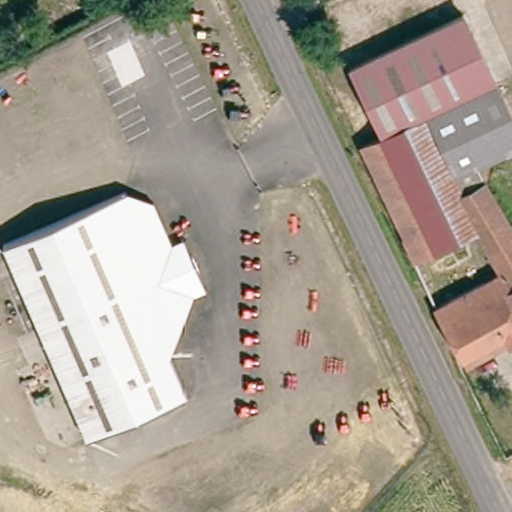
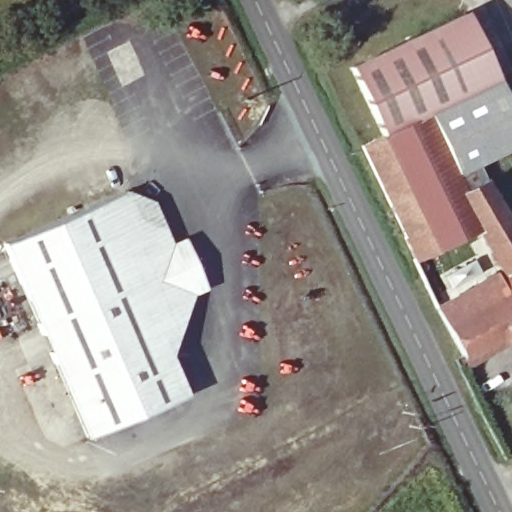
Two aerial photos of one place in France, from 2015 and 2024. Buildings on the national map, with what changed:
unchanged [(467,6),(512,83),(512,141),(483,157),(463,168),(430,111),(394,130),(384,111),(360,65),(467,6)]
unchanged [(512,232),(512,233),(501,238),(494,223),(431,256),(375,140),(394,130),(430,111),(463,168),(473,186),(494,175),(500,186),(504,184),(512,198),(512,214),(504,218),(512,232)]
unchanged [(185,399),(87,442),(2,238),(121,189),(122,190),(152,201),(164,233),(168,243),(187,236),(193,250),(199,267),(206,283),(188,291),(175,329),(158,336),(185,399)]
unchanged [(512,233),(512,259),(501,238),(512,233)]
unchanged [(450,303),(512,270),(512,346),(484,361),(477,348),(450,303)]

